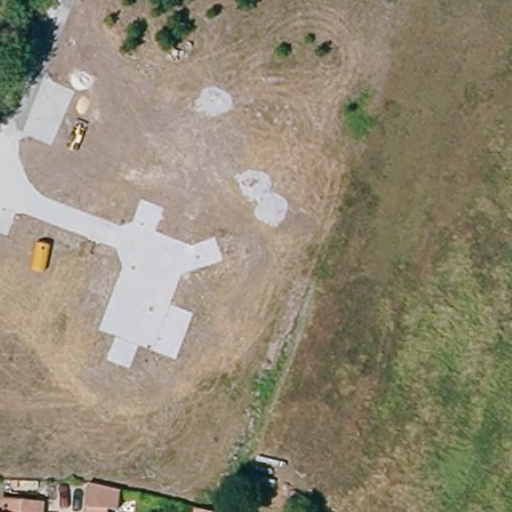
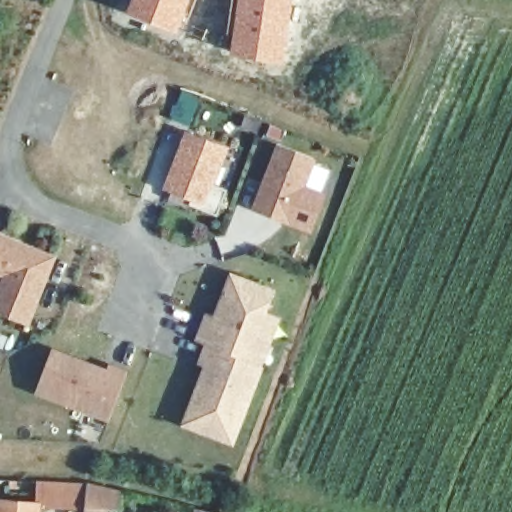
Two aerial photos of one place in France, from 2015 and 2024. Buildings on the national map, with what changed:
new [(128,0),(190,0),(177,31),(124,11),(128,0)]
new [(233,0),(294,0),(284,63),(229,54),(233,0)]
new [(180,88),(201,96),(189,126),(167,118),(180,88)]
new [(170,183),(191,130),(230,145),(215,180),(230,186),(220,211),(205,205),(193,201),(195,194),(170,183)]
unchanged [(258,204),(282,143),(316,156),(306,183),(326,190),(313,225),(287,215),(275,210),(258,204)]
new [(30,318),(0,305),(0,297),(10,270),(0,266),(0,231),(56,253),(30,318)]
new [(204,359),(210,341),(201,338),(207,321),(210,313),(218,316),(235,272),(275,287),(266,310),(282,316),(265,362),(240,424),(235,438),(190,421),(196,407),(213,362),(204,359)]
new [(87,358),(100,363),(112,368),(114,363),(130,370),(112,415),(42,388),(57,347),(87,358)]
new [(35,507),(35,503),(36,480),(87,482),(85,510),(35,507)]
unchanged [(119,510),(106,509),(106,512),(85,512),(87,482),(120,488),(119,510)]
unchanged [(1,503),(35,503),(35,512),(0,512),(0,508),(1,503)]

